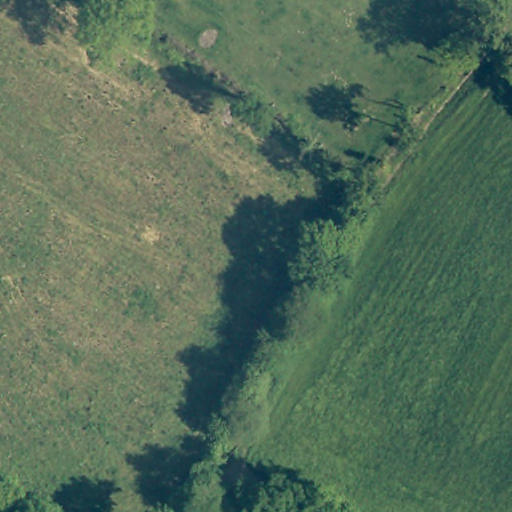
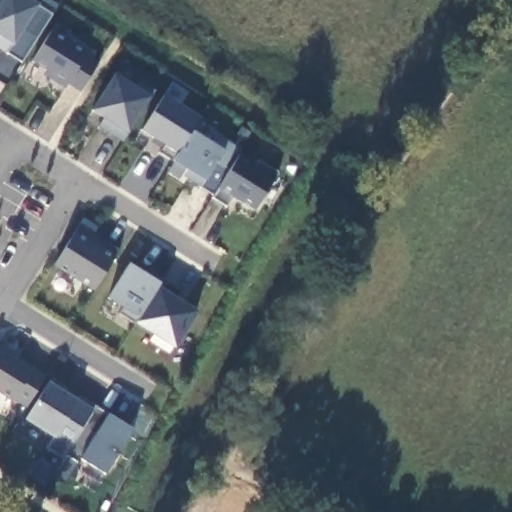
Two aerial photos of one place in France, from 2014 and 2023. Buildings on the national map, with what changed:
new [(22,62),(0,49),(0,4),(3,0),(31,0),(38,4),(40,0),(50,0),(58,5),(52,15),(22,62)]
new [(80,91),(68,84),(65,89),(43,75),(46,70),(32,62),(54,30),(88,50),(86,54),(98,62),(80,91)]
new [(137,87),(141,80),(154,89),(150,95),(127,133),(122,140),(99,126),(105,119),(92,111),(115,74),(137,87)]
new [(199,118),(192,130),(213,142),(216,133),(237,146),(225,166),(231,168),(240,155),(256,165),(258,160),(279,172),(275,177),(255,211),(232,197),(226,207),(212,198),(214,195),(202,186),(201,189),(183,176),(188,170),(173,161),(175,159),(159,152),(162,149),(152,142),(156,139),(142,130),(164,95),(199,118)]
new [(96,227),(94,231),(119,249),(115,255),(94,291),(53,265),(83,220),(96,227)]
new [(175,348),(137,323),(119,313),(123,308),(107,298),(129,263),(148,275),(151,268),(164,277),(163,280),(182,292),(179,299),(199,311),(175,348)]
new [(27,407),(15,398),(13,401),(0,394),(0,349),(6,352),(8,350),(46,375),(27,407)]
new [(81,457),(66,453),(63,458),(48,448),(55,437),(25,418),(49,381),(77,400),(80,397),(108,414),(134,430),(106,473),(81,457)]

